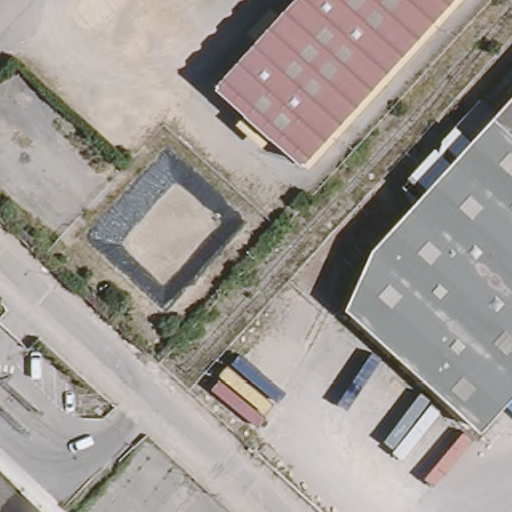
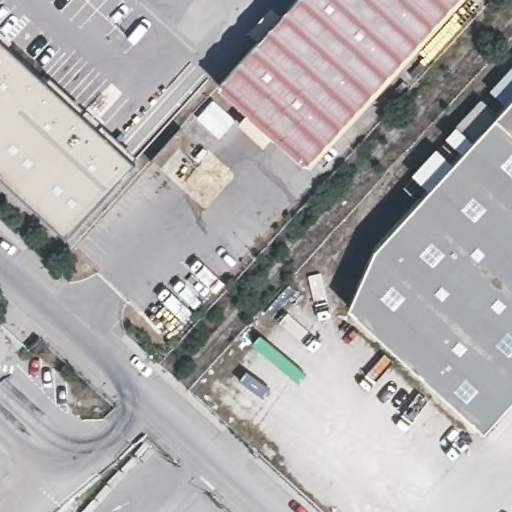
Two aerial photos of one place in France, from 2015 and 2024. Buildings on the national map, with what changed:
unchanged [(300,157),(218,80),(291,0),(443,0),(300,157)]
new [(67,234),(0,173),(0,40),(132,163),(67,234)]
unchanged [(493,422),(359,300),(383,242),(512,100),(512,401),(493,422)]

